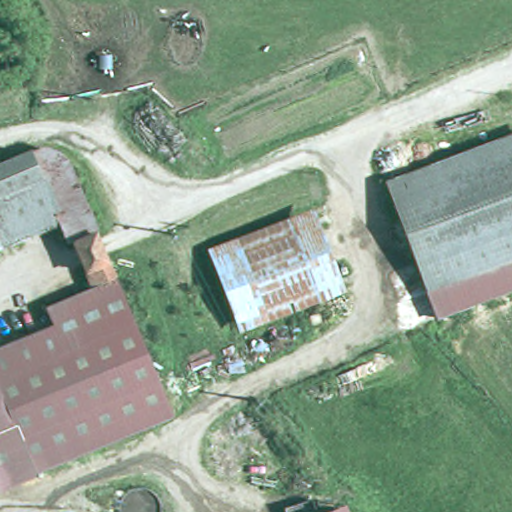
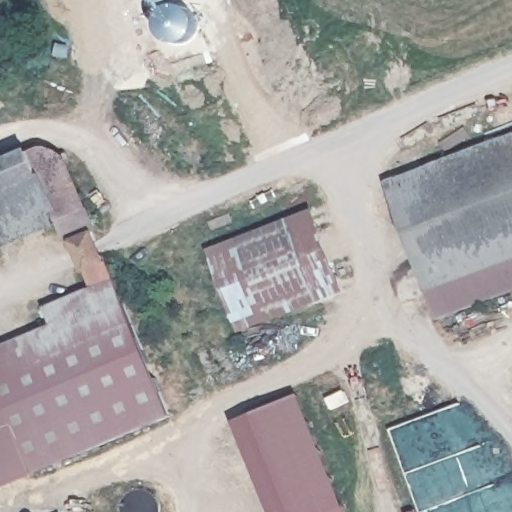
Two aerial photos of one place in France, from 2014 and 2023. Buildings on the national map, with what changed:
unchanged [(385,180),(512,133),(512,291),(436,320),(385,180)]
unchanged [(43,178),(0,196),(0,167),(38,151),(58,162),(63,170),(43,178)]
unchanged [(87,284),(43,178),(63,170),(113,274),(87,284)]
new [(43,178),(61,221),(0,248),(0,196),(43,178)]
unchanged [(349,289),(248,329),(211,252),(317,208),(349,289)]
unchanged [(90,293),(116,282),(138,333),(0,391),(0,332),(90,293)]
unchanged [(175,418),(0,493),(0,391),(138,333),(175,418)]
new [(337,512),(270,512),(233,420),(299,392),(348,508),(337,512)]
unchanged [(353,512),(337,512),(351,506),(353,512)]

